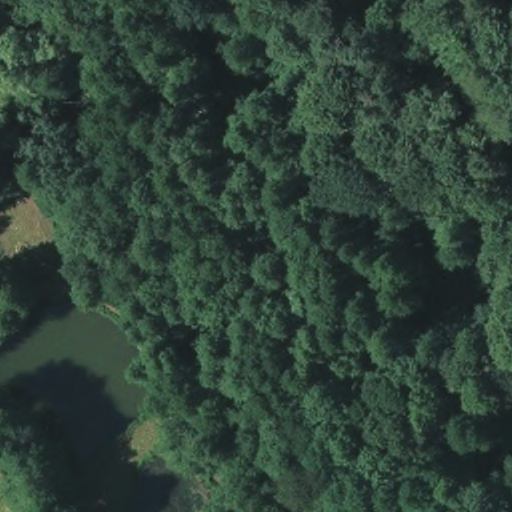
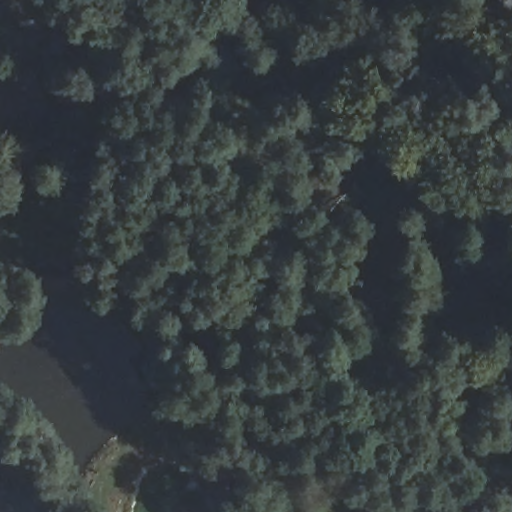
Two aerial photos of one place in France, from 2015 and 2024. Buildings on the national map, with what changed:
unchanged [(39,265),(25,235),(42,227),(53,254),(39,265)]

